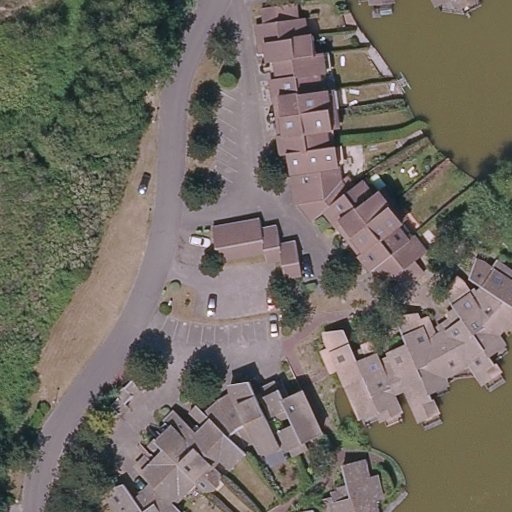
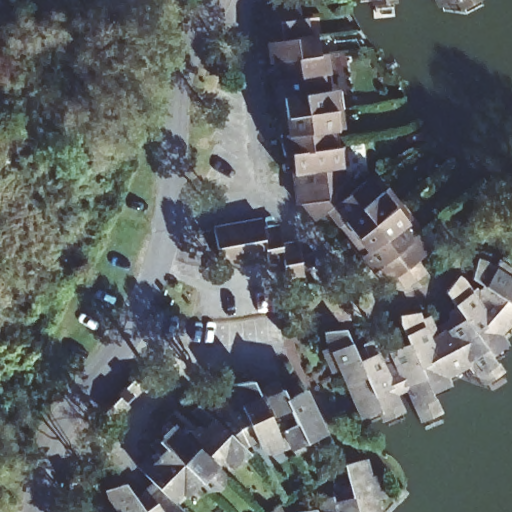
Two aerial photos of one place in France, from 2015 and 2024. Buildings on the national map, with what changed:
unchanged [(259,20),(256,5),(262,5),(292,1),(295,14),(300,14),(302,32),(311,31),(313,48),(320,47),(323,67),(317,67),(319,85),(325,84),(328,102),(332,119),(325,121),(327,140),(333,139),(339,174),(347,183),(355,177),(367,192),(373,188),(384,202),(397,218),(393,222),(404,235),(409,231),(422,247),(410,257),(414,262),(418,267),(398,285),(395,281),(389,275),(385,278),(375,267),(372,263),(367,267),(355,252),(359,248),(336,220),(330,223),(319,208),(308,217),(295,200),(292,201),(287,171),(283,151),(278,152),(275,130),(280,129),(275,95),(269,96),(265,75),(272,74),(270,57),(263,58),(262,48),(255,49),(254,40),(252,21),(259,20)]
unchanged [(265,264),(265,254),(218,262),(212,229),(258,221),(260,230),(276,227),(279,246),(295,243),(298,262),(300,276),(285,279),(282,261),(273,262),(265,264)]
unchanged [(477,370),(432,390),(438,406),(433,414),(422,419),(412,395),(400,401),(404,411),(385,419),(382,409),(372,414),(361,412),(348,386),(343,375),(336,379),(332,370),(327,358),(335,354),(330,344),(331,338),(350,337),(359,359),(368,355),(366,351),(375,347),(382,363),(387,374),(390,372),(386,364),(395,360),(394,357),(411,350),(402,331),(403,322),(420,320),(422,327),(430,324),(435,331),(438,337),(441,336),(444,342),(447,339),(442,332),(456,322),(453,318),(458,314),(449,299),(460,285),(466,289),(472,299),(478,293),(481,296),(485,292),(475,284),(482,267),(490,269),(497,275),(504,267),(511,271),(510,273),(512,274),(512,331),(503,341),(506,345),(490,355),(500,370),(501,372),(504,377),(505,378),(505,379),(490,389),(487,385),(485,382),(482,377),(477,370)]
unchanged [(120,399),(117,396),(118,395),(132,381),(135,385),(145,377),(152,386),(147,391),(143,394),(141,391),(126,405),(128,407),(112,422),(103,414),(120,399)]
unchanged [(155,483),(142,470),(152,459),(155,461),(160,456),(152,447),(157,441),(171,453),(185,440),(180,435),(174,440),(165,430),(182,413),(202,435),(215,423),(210,418),(205,423),(195,413),(202,406),(212,416),(223,404),(227,402),(238,397),(236,386),(255,383),(268,410),(275,406),(268,392),(282,385),(289,400),(298,397),(306,393),(327,436),(310,445),(313,450),(298,457),(293,445),(285,449),(282,440),(263,448),(260,441),(250,445),(245,450),(251,456),(237,469),(220,451),(210,459),(225,476),(210,491),(203,484),(188,498),(187,497),(175,507),(180,512),(120,512),(110,497),(108,489),(129,485),(137,499),(145,494),(143,492),(155,483)]
unchanged [(328,511),(323,497),(332,494),(333,500),(345,497),(343,491),(340,483),(350,480),(345,460),(363,455),(367,471),(374,469),(377,479),(380,492),(373,494),(377,511),(377,512),(337,512),(335,508),(328,511)]
unchanged [(80,479),(87,476),(92,487),(70,495),(66,484),(80,479)]
unchanged [(314,506),(317,512),(296,512),(295,510),(314,506)]

